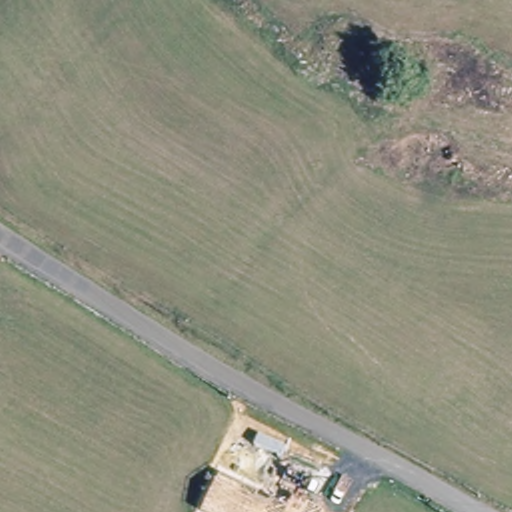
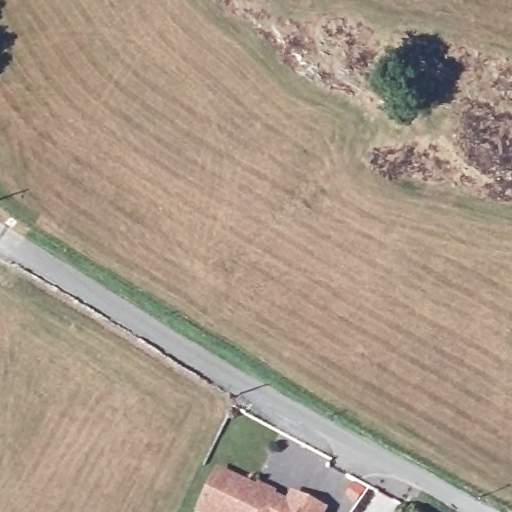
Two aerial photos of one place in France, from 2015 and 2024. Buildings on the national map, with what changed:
new [(257,485),(257,483),(278,493),(277,495),(287,500),(291,491),(328,508),(326,512),(196,512),(217,467),(257,485)]

